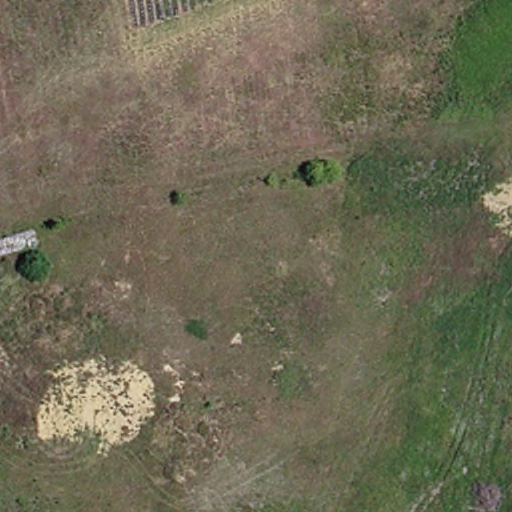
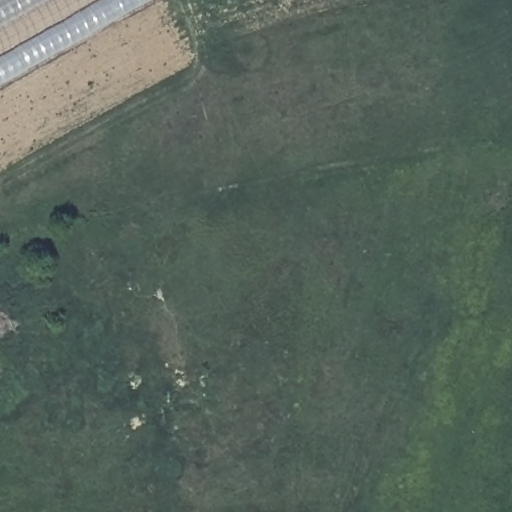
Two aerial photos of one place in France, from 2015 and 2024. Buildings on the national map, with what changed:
new [(0,88),(0,0),(150,0),(152,3),(0,88)]

